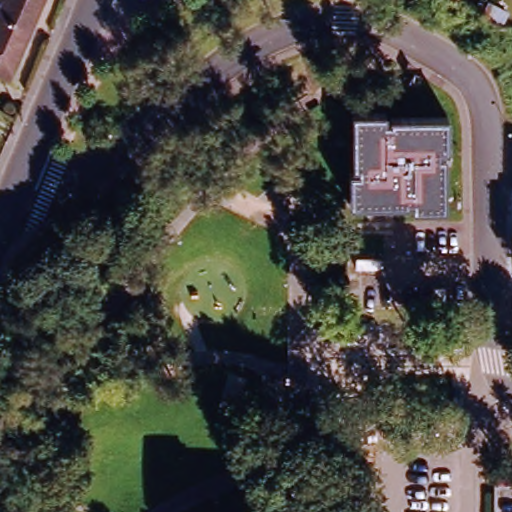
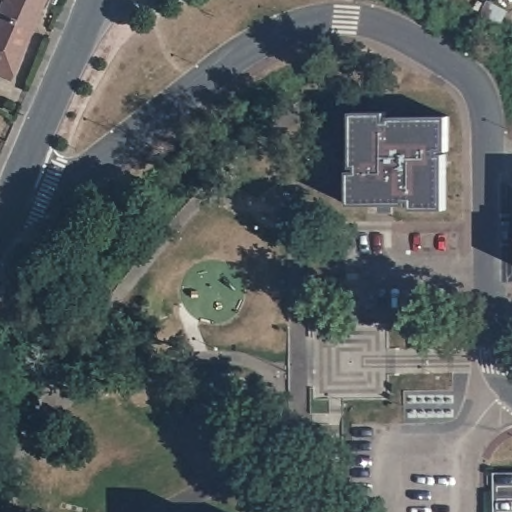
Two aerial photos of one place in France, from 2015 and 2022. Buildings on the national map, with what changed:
unchanged [(2,0),(43,0),(31,30),(0,17),(0,10),(4,1),(2,0)]
unchanged [(9,81),(0,77),(0,17),(31,30),(9,81)]
unchanged [(347,166),(357,167),(357,160),(351,159),(352,104),(387,106),(387,116),(397,117),(397,111),(452,113),(451,146),(442,145),(442,153),(447,154),(446,208),(409,207),(410,197),(400,197),(400,202),(346,200),(347,166)]

